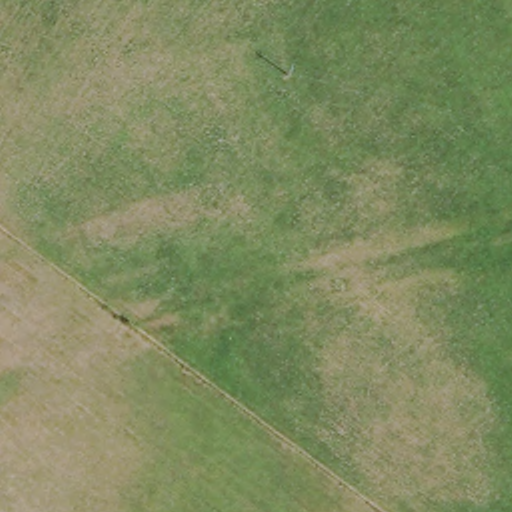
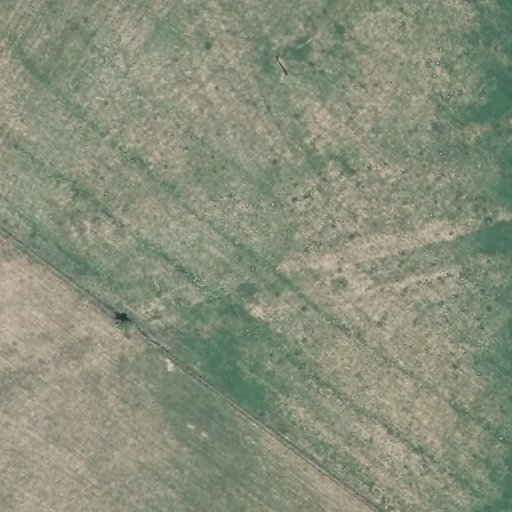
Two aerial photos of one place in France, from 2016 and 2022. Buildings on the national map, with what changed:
[]

